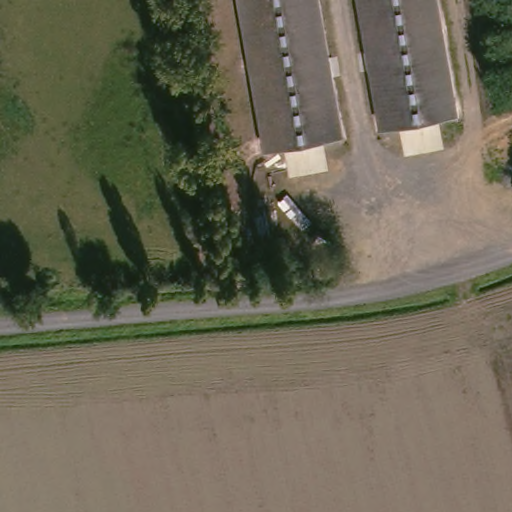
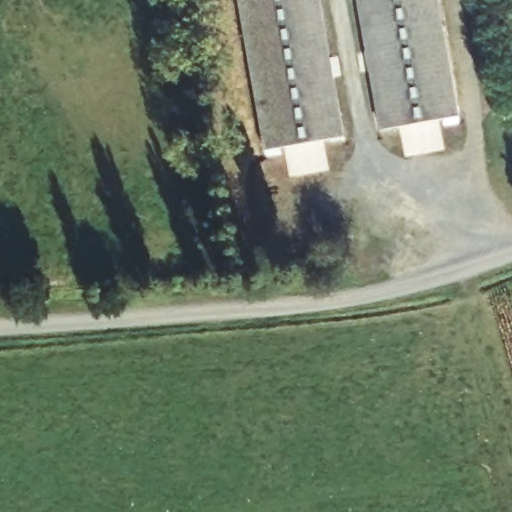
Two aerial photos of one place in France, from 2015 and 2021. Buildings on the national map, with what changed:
unchanged [(323,0),(330,43),(254,55),(244,0),(323,0)]
unchanged [(370,38),(363,0),(443,0),(448,25),(370,38)]
unchanged [(463,110),(385,124),(370,38),(448,25),(463,110)]
unchanged [(347,130),(271,145),(254,55),(330,43),(347,130)]

